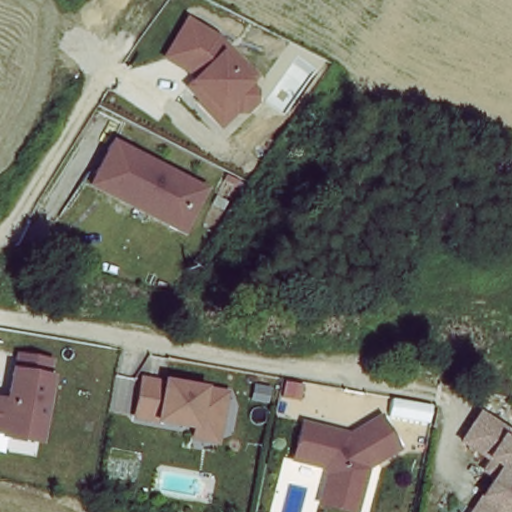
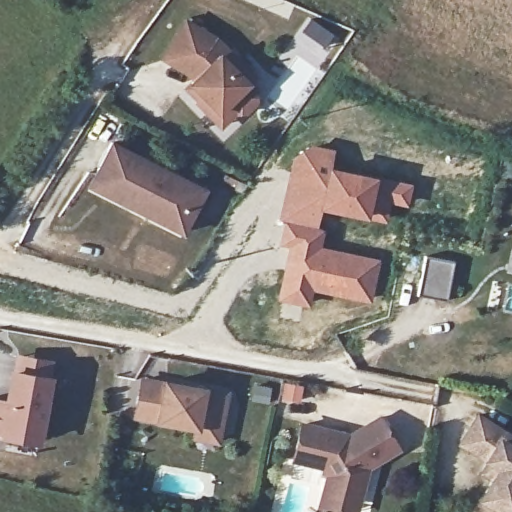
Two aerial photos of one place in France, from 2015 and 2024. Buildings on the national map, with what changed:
unchanged [(215,124),(199,107),(201,106),(189,94),(193,89),(197,85),(191,78),(166,64),(187,27),(217,44),(241,67),(255,83),(251,87),(249,89),(257,97),(257,108),(248,117),(237,117),(223,131),(215,124)]
unchanged [(99,173),(115,141),(208,190),(186,232),(140,209),(93,184),(99,173)]
new [(292,154),(309,143),(335,148),(332,164),(379,175),(369,219),(321,210),(318,226),(281,220),(275,219),(292,154)]
new [(379,175),(414,184),(409,208),(391,205),(387,223),(369,219),(379,175)]
new [(281,220),(318,226),(326,229),(322,245),(382,258),(372,305),(314,292),(310,308),(276,302),(285,247),(276,245),(281,220)]
new [(430,257),(460,265),(449,303),(420,296),(430,257)]
unchanged [(23,437),(0,433),(0,401),(10,402),(15,372),(18,373),(21,357),(52,362),(49,378),(52,378),(42,431),(41,440),(23,437)]
unchanged [(197,439),(198,429),(138,417),(145,380),(168,385),(168,383),(229,395),(222,433),(220,443),(197,439)]
unchanged [(492,480),(482,474),(489,463),(460,445),(477,417),(512,440),(512,512),(472,512),(492,480)]
unchanged [(324,506),(327,493),(331,476),(327,468),(296,461),(305,426),(352,437),(382,420),(401,451),(371,469),(362,503),(359,512),(347,512),(324,506)]

